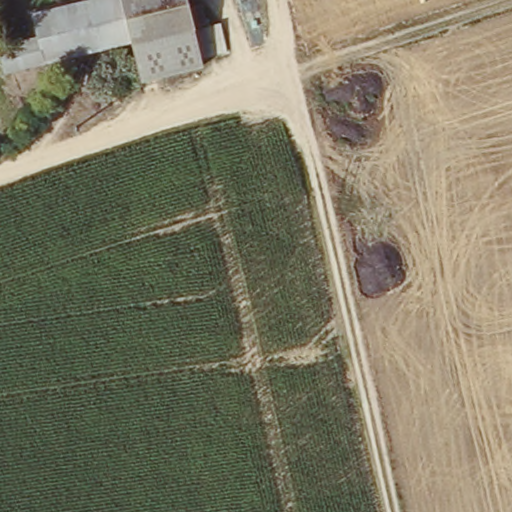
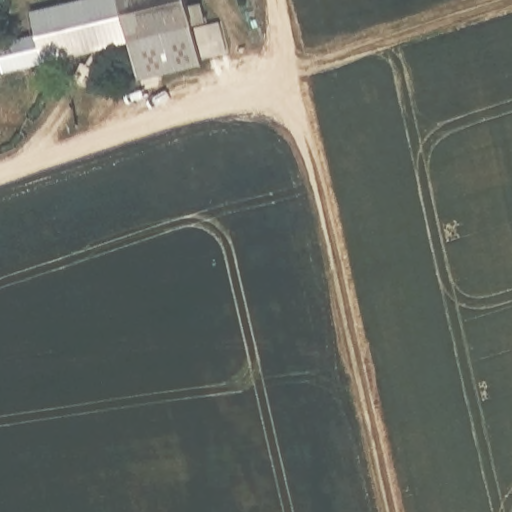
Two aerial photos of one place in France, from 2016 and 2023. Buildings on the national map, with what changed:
unchanged [(190,13),(202,10),(207,29),(195,32),(205,71),(142,87),(132,48),(5,79),(0,57),(0,26),(102,0),(187,0),(190,13)]

